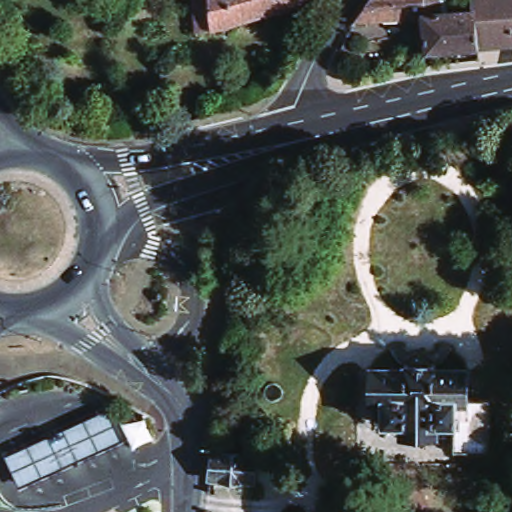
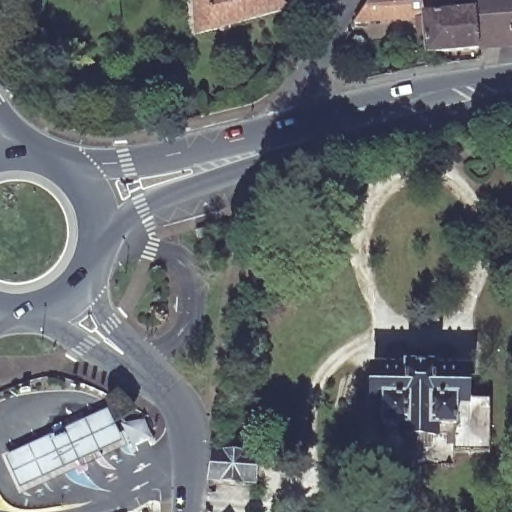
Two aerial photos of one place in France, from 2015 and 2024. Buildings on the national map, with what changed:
unchanged [(291,11),(277,16),(249,24),(211,35),(207,0),(314,0),(297,9),(291,11)]
unchanged [(377,19),(364,19),(378,0),(432,0),(433,14),(377,19)]
unchanged [(484,8),(483,0),(512,0),(512,43),(486,45),(484,8)]
unchanged [(486,45),(437,50),(433,14),(484,8),(486,45)]
unchanged [(406,363),(406,357),(406,353),(408,349),(410,347),(413,345),(417,343),(420,343),(423,343),(430,346),(432,349),(435,352),(435,354),(435,359),(434,363),(468,364),(467,394),(490,394),(488,449),(451,448),(452,424),(432,423),(431,431),(403,430),(403,422),(382,422),(383,392),(375,392),(375,362),(406,363)]
unchanged [(119,448),(63,474),(20,494),(8,467),(62,441),(106,421),(119,448)]
unchanged [(115,422),(142,427),(150,443),(152,448),(151,448),(131,457),(115,422)]
unchanged [(230,453),(272,459),(270,484),(226,478),(230,453)]

